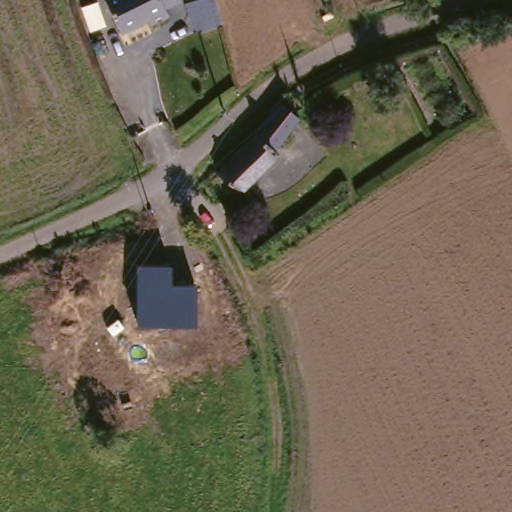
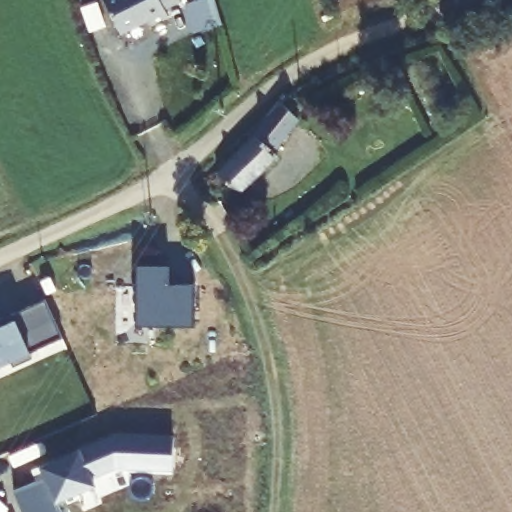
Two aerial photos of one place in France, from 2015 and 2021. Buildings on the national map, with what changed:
unchanged [(183,0),(168,9),(172,16),(154,26),(151,20),(125,35),(106,0),(183,0)]
unchanged [(251,139),(280,102),(299,118),(273,150),(277,156),(241,190),(218,174),(251,139)]
unchanged [(135,325),(135,265),(171,265),(171,285),(195,284),(195,325),(135,325)]
new [(9,313),(43,297),(61,337),(28,351),(31,357),(12,366),(9,360),(0,365),(0,318),(9,313)]
new [(39,466),(114,434),(174,435),(174,466),(127,465),(125,461),(90,475),(94,483),(56,500),(61,512),(21,512),(12,491),(44,478),(39,466)]

